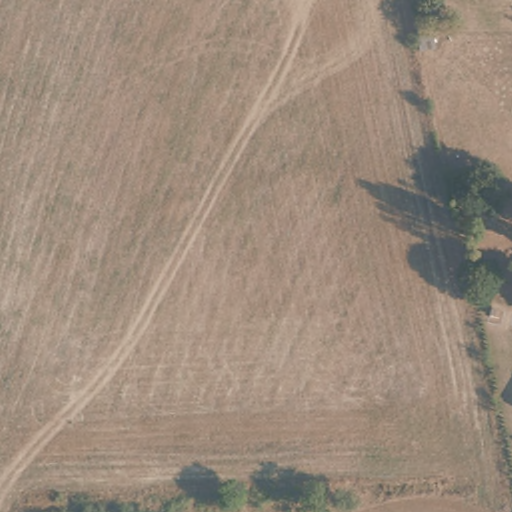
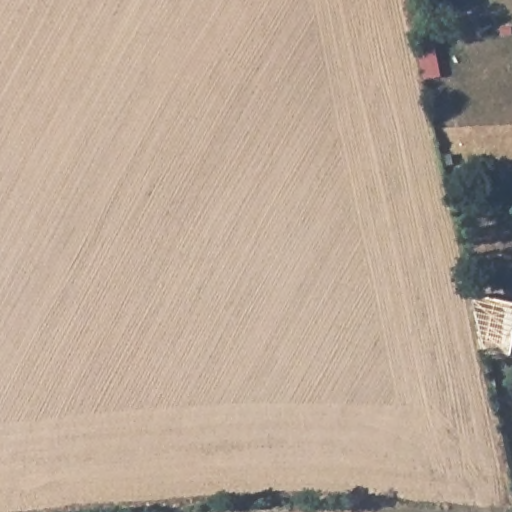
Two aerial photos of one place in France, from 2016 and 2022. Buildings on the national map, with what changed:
[]

